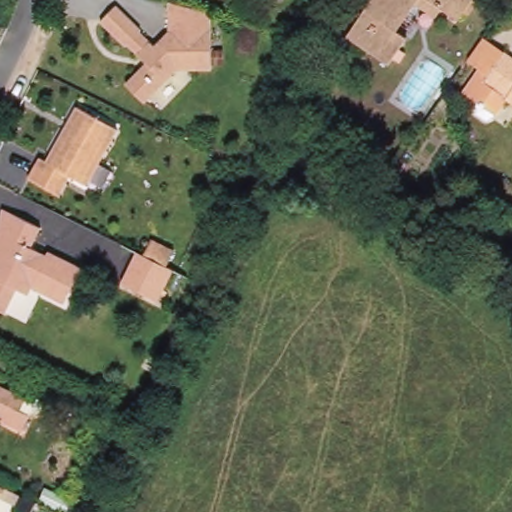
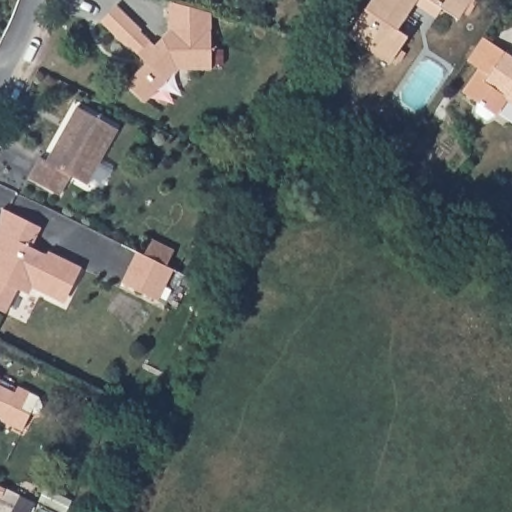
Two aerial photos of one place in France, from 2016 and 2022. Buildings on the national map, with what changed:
unchanged [(402,37),(384,64),(343,35),(366,0),(465,0),(453,20),(437,9),(432,17),(410,4),(393,31),(402,37)]
unchanged [(209,31),(210,70),(172,70),(140,101),(123,84),(144,62),(124,43),(122,45),(98,21),(114,5),(138,29),(135,31),(151,47),(165,32),(209,31)]
unchanged [(346,40),(338,54),(327,46),(336,34),(346,40)]
unchanged [(457,94),(473,69),(463,62),(479,39),(499,50),(512,59),(512,106),(499,97),(489,114),(476,105),(457,94)]
unchanged [(74,107),(114,129),(84,185),(43,162),(74,107)]
unchanged [(0,313),(0,219),(3,213),(36,229),(32,239),(25,241),(28,249),(44,256),(46,252),(79,268),(65,297),(56,301),(28,287),(24,295),(11,288),(0,313)]
unchanged [(119,285),(134,251),(141,255),(149,239),(172,250),(164,266),(170,269),(154,301),(119,285)]
unchanged [(509,257),(512,254),(512,259),(509,257)]
unchanged [(16,389),(37,399),(41,406),(38,414),(29,415),(21,431),(0,421),(1,419),(0,418),(0,389),(13,395),(16,389)]

